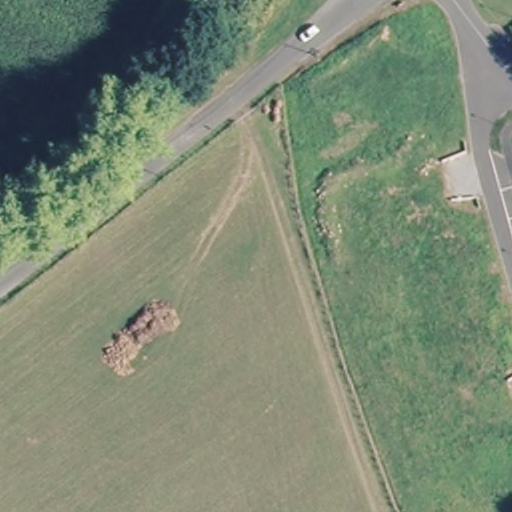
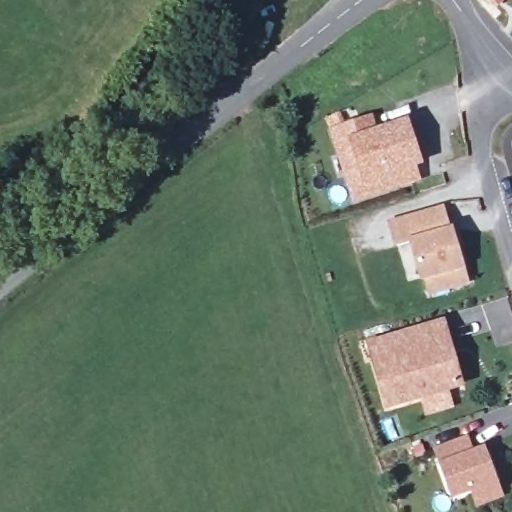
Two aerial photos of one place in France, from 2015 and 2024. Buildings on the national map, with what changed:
new [(352,204),(328,128),(374,114),(378,127),(410,118),(425,164),(417,166),(422,181),(352,204)]
new [(445,204),(451,226),(453,225),(466,267),(470,284),(428,297),(424,281),(420,283),(408,244),(394,249),(386,220),(445,204)]
new [(440,324),(458,384),(388,405),(370,344),(440,324)]
new [(478,504),(472,489),(455,496),(437,451),(457,444),(462,459),(483,451),(495,481),(500,497),(478,504)]

